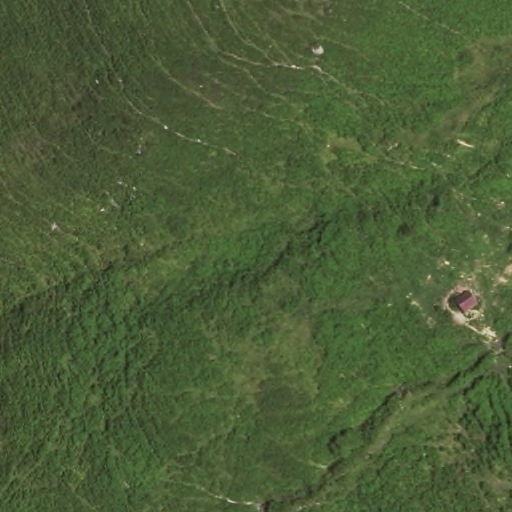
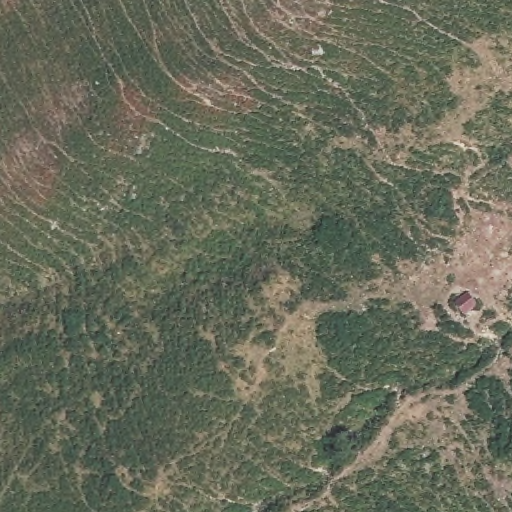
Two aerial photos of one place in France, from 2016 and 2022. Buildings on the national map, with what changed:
unchanged [(479,275),(493,295),(474,317),(461,295),(479,275)]

